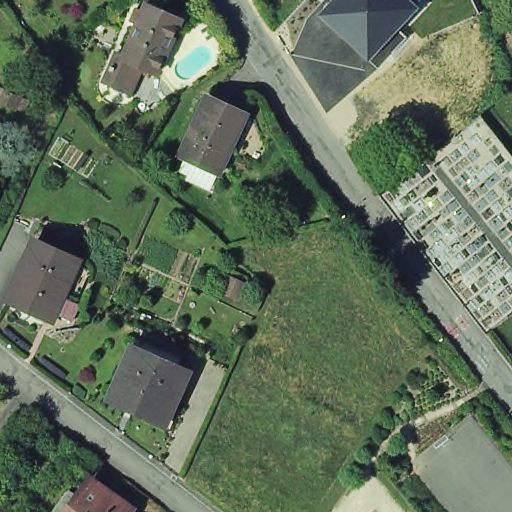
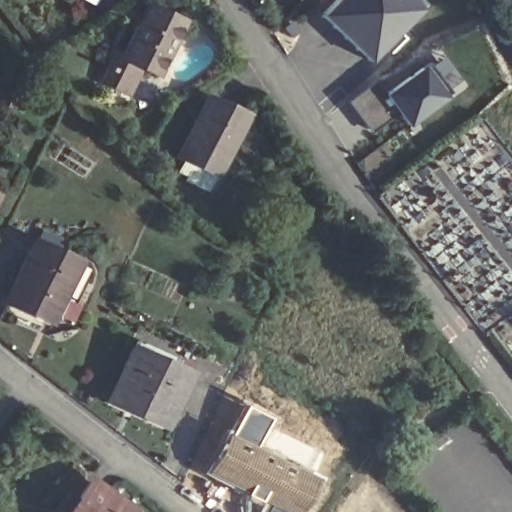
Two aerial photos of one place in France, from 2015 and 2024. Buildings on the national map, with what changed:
unchanged [(316,15),(330,0),(411,0),(420,9),(369,61),(316,15)]
unchanged [(101,79),(113,51),(118,53),(142,2),(176,18),(152,69),(140,63),(126,91),(101,79)]
new [(450,99),(410,127),(399,111),(371,132),(348,102),(377,81),(386,94),(426,65),(450,99)]
unchanged [(185,168),(191,155),(185,152),(211,96),(248,113),(221,169),(220,169),(211,186),(189,175),(191,171),(185,168)]
unchanged [(43,323),(7,306),(35,247),(40,249),(45,237),(60,244),(55,256),(78,267),(63,299),(50,326),(43,323)]
unchanged [(225,278),(238,284),(232,298),(218,293),(225,278)]
unchanged [(108,391),(126,348),(181,372),(160,422),(129,408),(105,398),(108,391)]
new [(238,403),(268,418),(255,444),(224,431),(238,403)]
new [(200,471),(221,429),(224,431),(255,444),(317,476),(301,512),(260,512),(264,505),(200,471)]
unchanged [(78,503),(91,487),(125,512),(58,512),(70,497),(78,503)]

